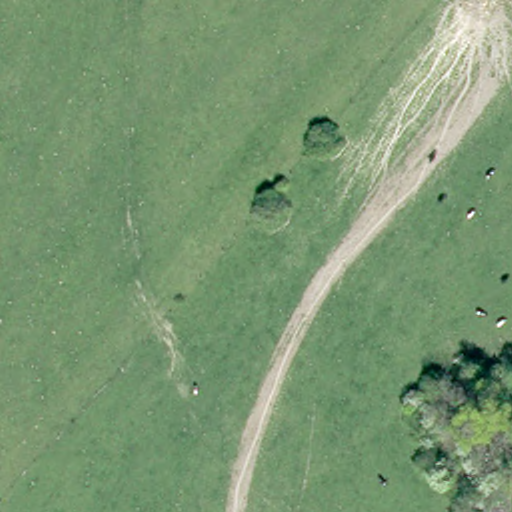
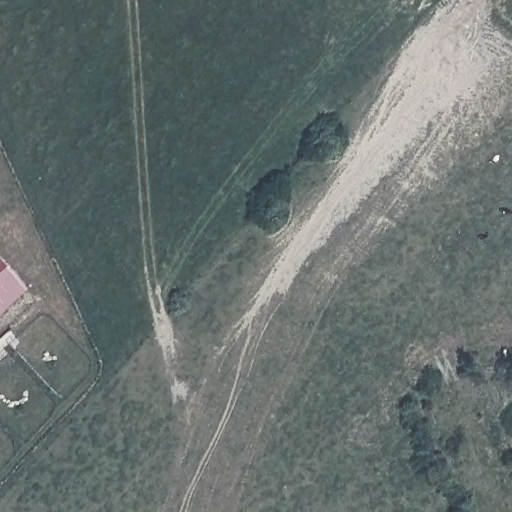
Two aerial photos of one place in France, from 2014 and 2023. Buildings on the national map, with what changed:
new [(0,313),(0,262),(26,289),(0,313)]

